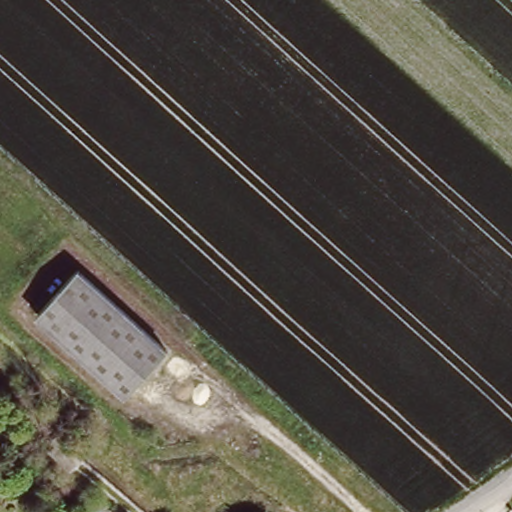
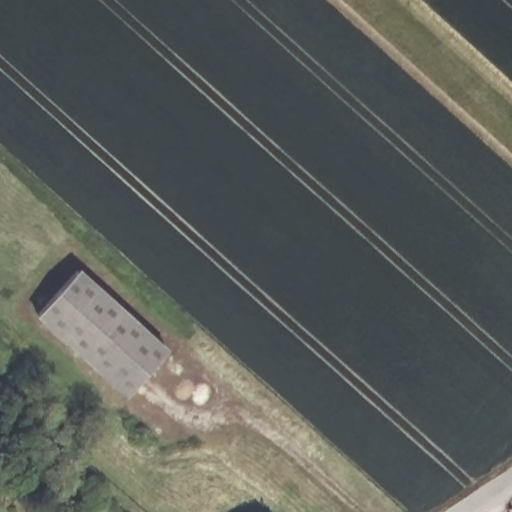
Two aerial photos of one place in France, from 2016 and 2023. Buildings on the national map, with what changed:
unchanged [(80,270),(171,350),(129,397),(39,316),(80,270)]
unchanged [(54,455),(63,445),(83,462),(74,473),(54,455)]

